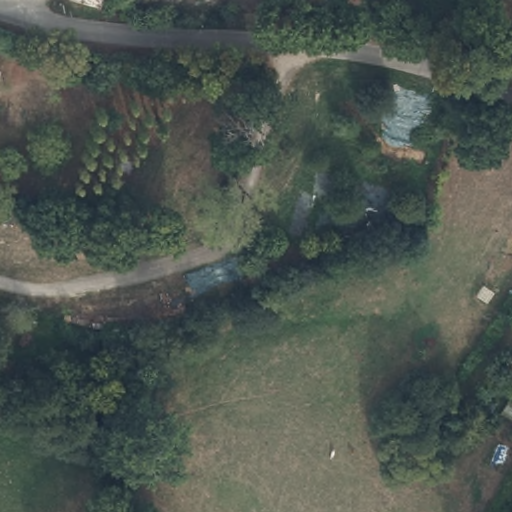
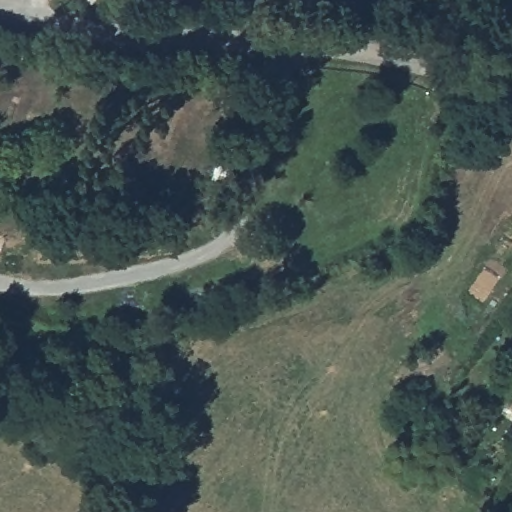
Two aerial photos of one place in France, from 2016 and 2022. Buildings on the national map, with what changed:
unchanged [(327,0),(331,0),(330,1),(327,0)]

